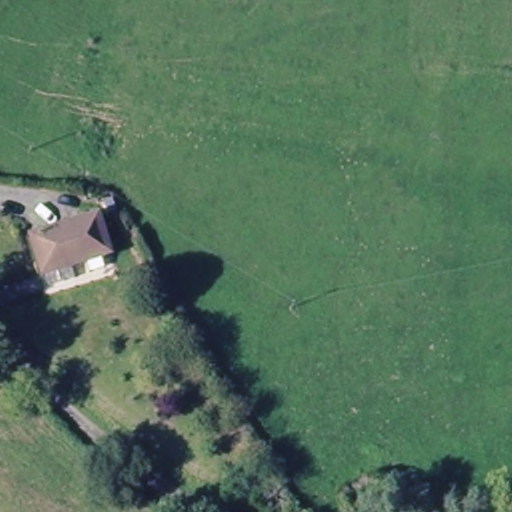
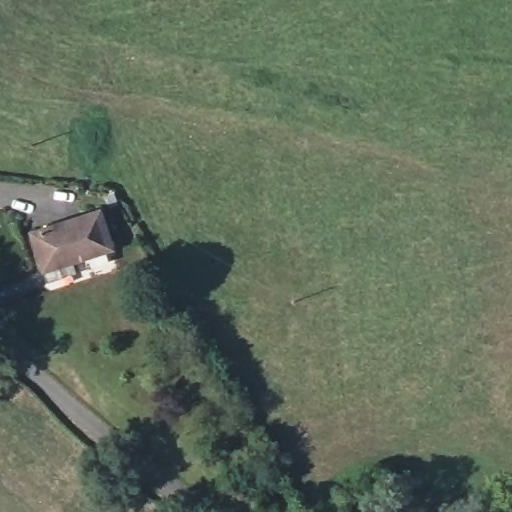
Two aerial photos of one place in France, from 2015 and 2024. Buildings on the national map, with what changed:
unchanged [(33,237),(97,212),(110,247),(45,273),(33,237)]

